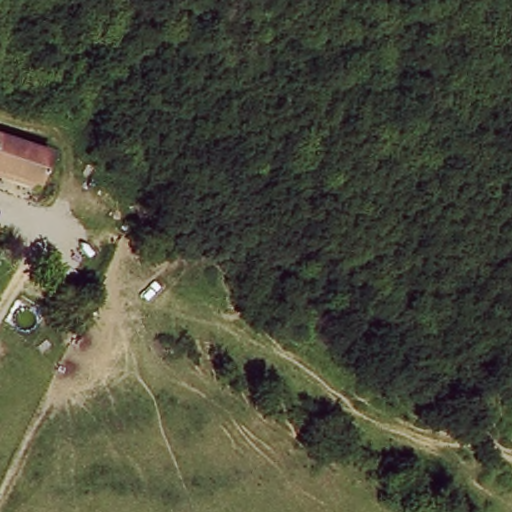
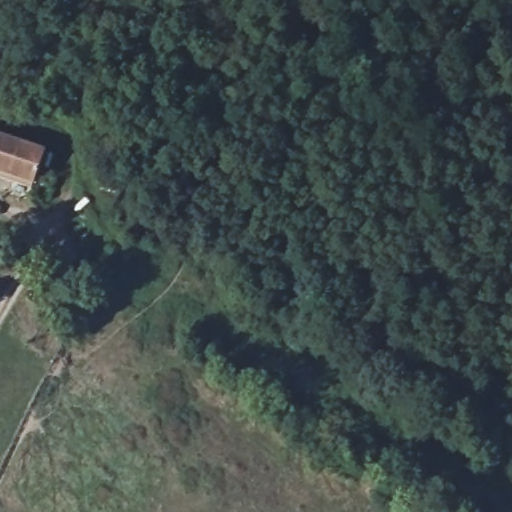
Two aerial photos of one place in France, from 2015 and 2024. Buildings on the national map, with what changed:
unchanged [(0,173),(0,137),(46,150),(36,177),(34,183),(0,173)]

